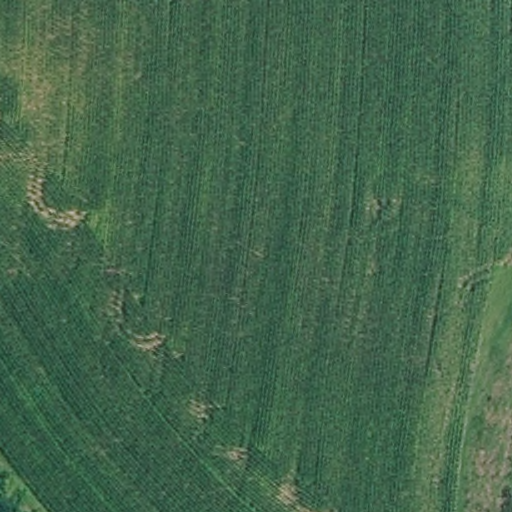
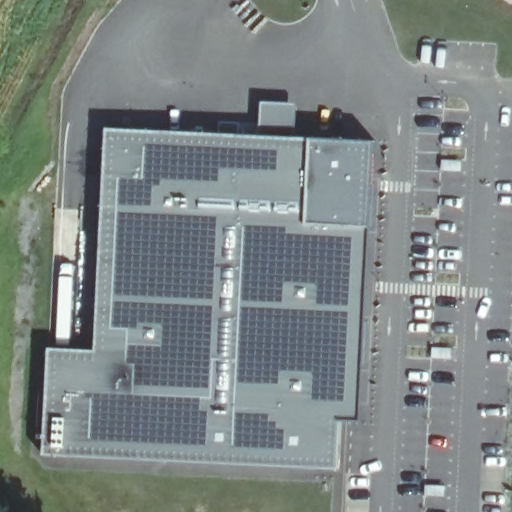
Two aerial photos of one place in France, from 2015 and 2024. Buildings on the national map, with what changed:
new [(41,454),(48,350),(95,351),(106,130),(261,138),(262,102),(296,104),(294,140),(373,144),(362,419),(341,419),(338,470),(41,454)]

